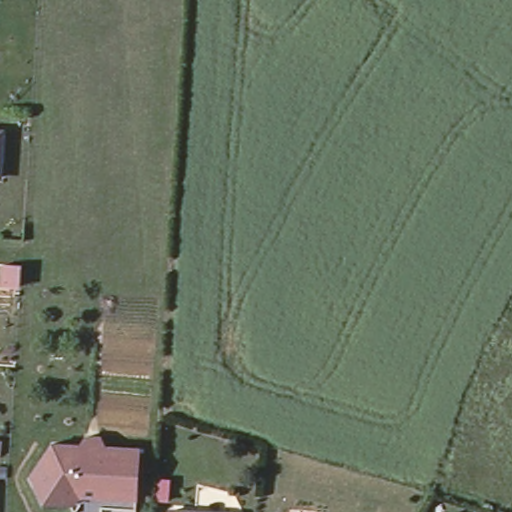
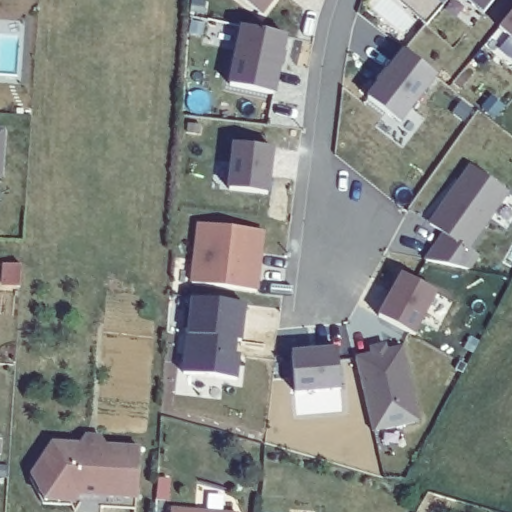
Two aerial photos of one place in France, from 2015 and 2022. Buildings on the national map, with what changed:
new [(242,0),(273,0),(261,15),(242,0)]
new [(441,4),(428,22),(402,0),(445,0),(441,4)]
new [(486,14),(468,0),(496,0),(486,14)]
new [(499,27),(512,12),(512,39),(499,27)]
new [(242,25),(286,36),(277,93),(229,83),(242,25)]
new [(438,76),(402,124),(367,96),(404,50),(438,76)]
unchanged [(0,162),(0,132),(2,132),(0,162)]
new [(230,190),(234,145),(273,150),(269,194),(230,190)]
new [(443,231),(430,222),(471,165),(509,193),(470,250),(481,256),(473,270),(426,260),(443,231)]
new [(198,225),(263,232),(257,291),(191,283),(198,225)]
unchanged [(20,266),(19,286),(3,285),(4,265),(20,266)]
new [(376,316),(399,275),(434,292),(411,335),(376,316)]
new [(247,305),(243,343),(238,341),(236,356),(241,356),(238,381),(184,372),(193,298),(247,305)]
new [(371,431),(354,358),(401,348),(417,421),(371,431)]
new [(293,353),(338,350),(341,390),(297,395),(293,353)]
unchanged [(51,442),(79,445),(86,436),(99,436),(104,446),(139,448),(136,497),(63,492),(57,480),(43,480),(35,468),(51,442)]
unchanged [(196,512),(171,512),(171,510),(196,512)]

